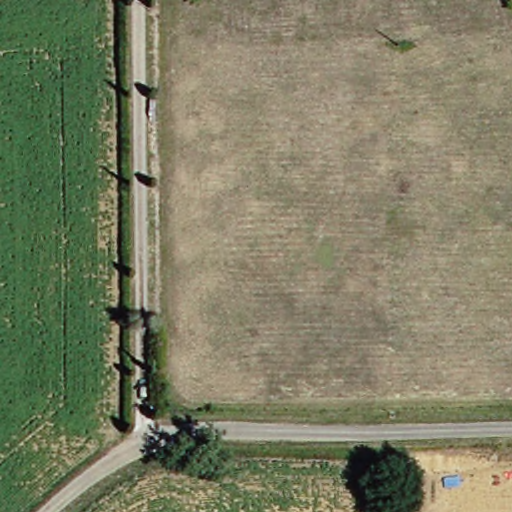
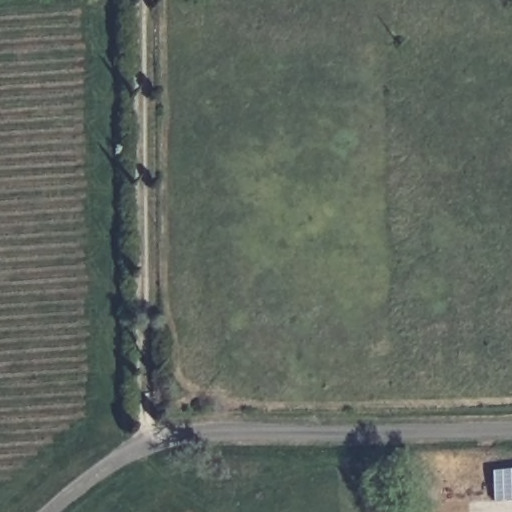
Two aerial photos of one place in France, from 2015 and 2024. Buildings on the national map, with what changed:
new [(490,473),(512,471),(512,501),(493,502),(490,473)]

